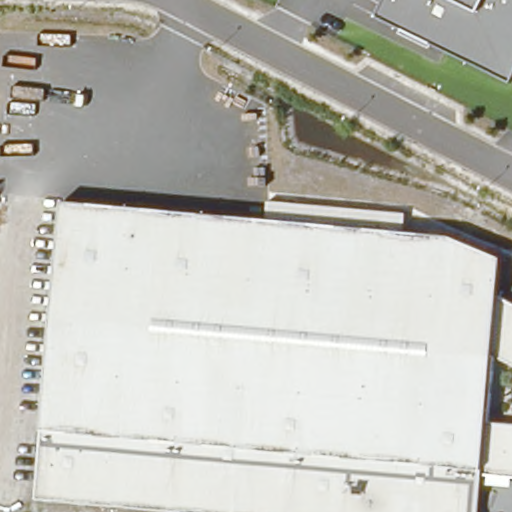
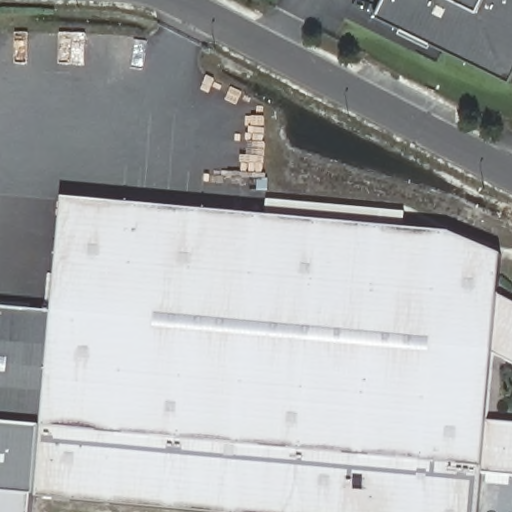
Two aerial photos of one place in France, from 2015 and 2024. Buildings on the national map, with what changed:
unchanged [(512,79),(512,80),(379,15),(386,0),(512,0),(512,79)]
unchanged [(512,301),(512,361),(494,351),(488,426),(512,427),(512,477),(483,474),(480,512),(213,512),(40,497),(48,427),(69,199),(268,216),(271,201),(407,213),(406,228),(451,232),(504,257),(500,294),(512,301)]
new [(0,423),(0,307),(58,312),(48,427),(0,423)]
new [(48,427),(40,497),(35,497),(33,512),(0,512),(0,423),(48,427)]

